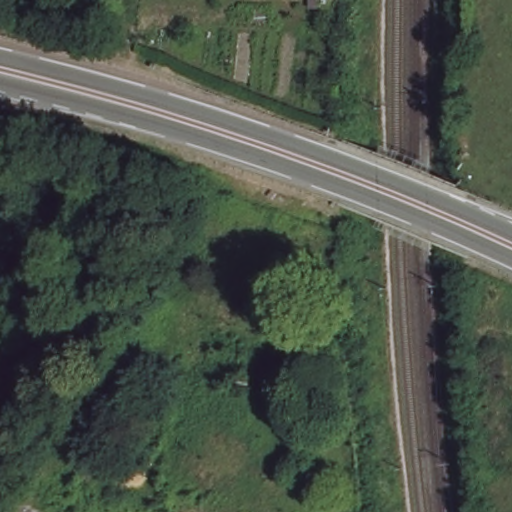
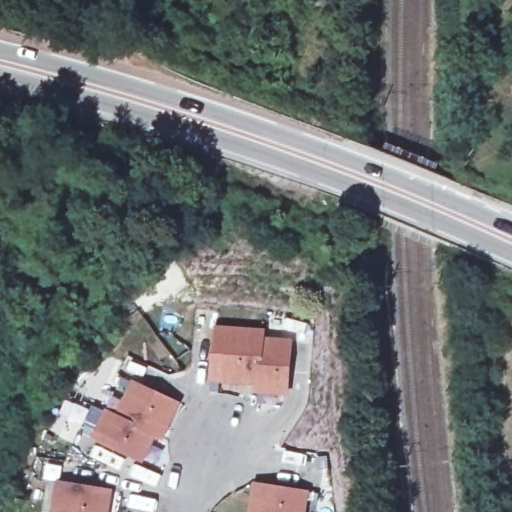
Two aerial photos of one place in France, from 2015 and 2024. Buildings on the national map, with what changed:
new [(263,391),(263,383),(217,379),(221,328),(267,331),(266,339),(295,341),(291,393),(263,391)]
new [(100,437),(112,411),(122,416),(138,382),(182,403),(166,437),(158,433),(146,459),(100,437)]
new [(59,512),(63,482),(115,491),(111,512),(59,512)]
new [(308,512),(256,512),(260,484),(311,492),(308,512)]

